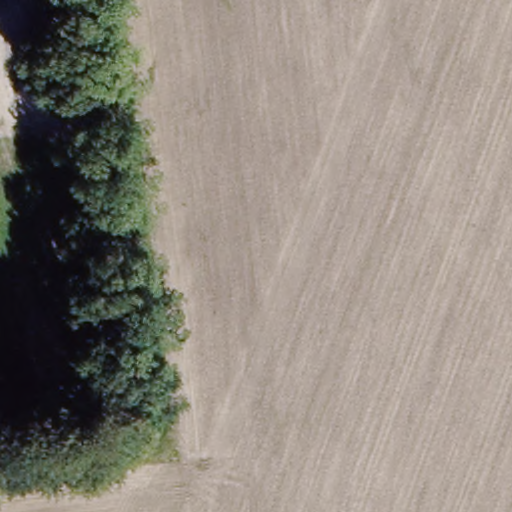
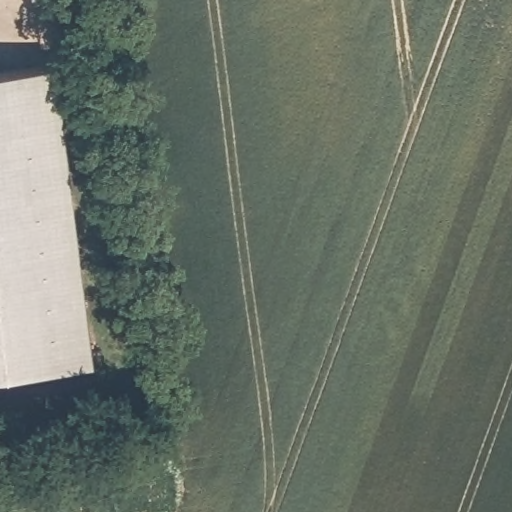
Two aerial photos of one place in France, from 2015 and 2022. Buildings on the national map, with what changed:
new [(78,354),(0,364),(0,60),(37,55),(78,354)]

